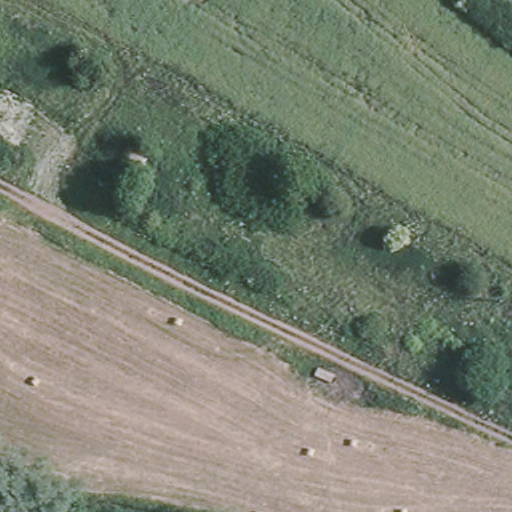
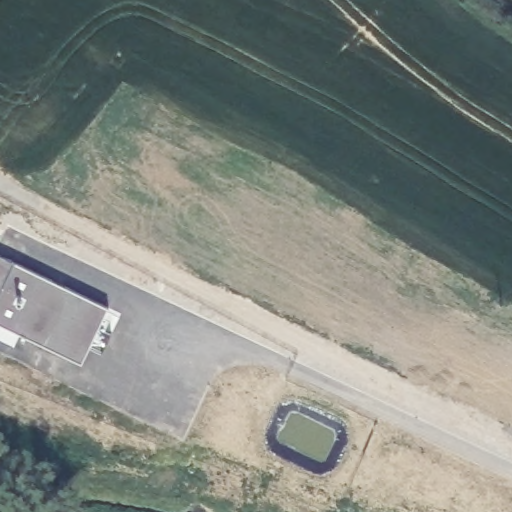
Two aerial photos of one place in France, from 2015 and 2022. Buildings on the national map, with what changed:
new [(82,367),(0,326),(0,257),(106,310),(82,367)]

